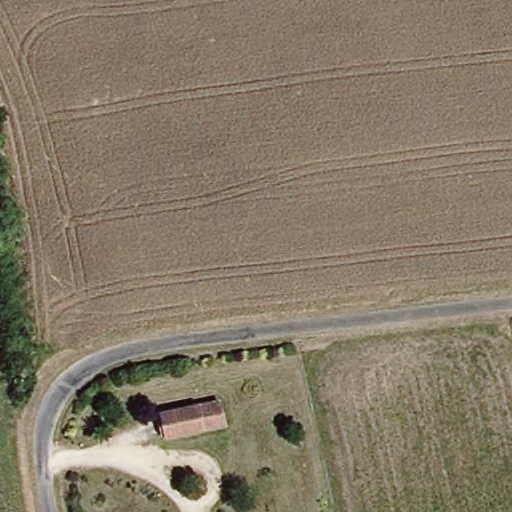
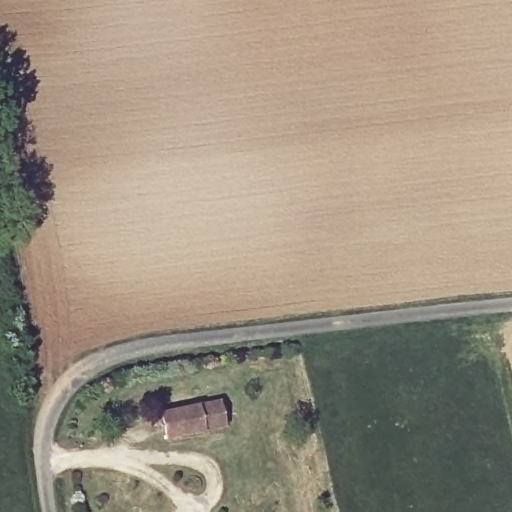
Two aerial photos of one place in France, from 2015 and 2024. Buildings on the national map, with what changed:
unchanged [(158,419),(198,411),(217,406),(222,430),(203,434),(163,443),(158,419)]

